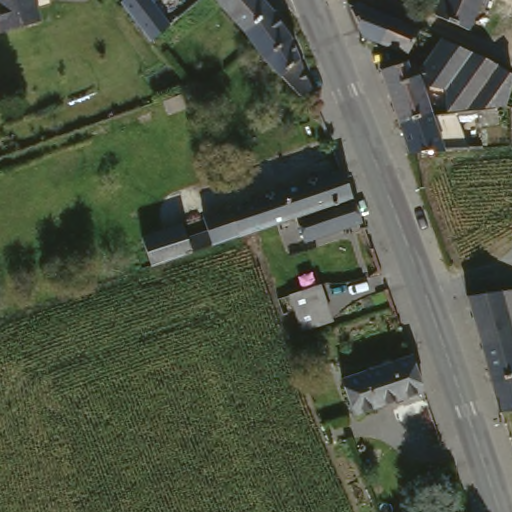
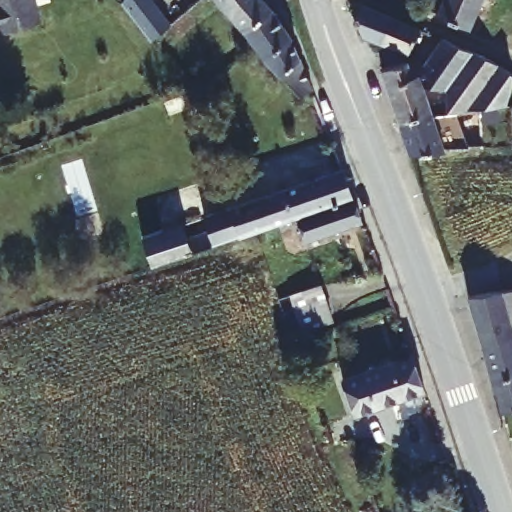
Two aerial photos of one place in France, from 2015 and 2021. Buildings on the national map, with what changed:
unchanged [(0,30),(0,0),(35,0),(41,18),(0,30)]
unchanged [(124,0),(158,0),(175,18),(158,44),(121,6),(124,0)]
unchanged [(282,77),(216,0),(264,0),(303,54),(282,77)]
unchanged [(353,25),(344,0),(355,0),(398,20),(410,25),(399,47),(387,41),(353,25)]
unchanged [(444,0),(483,0),(473,27),(440,12),(444,0)]
unchanged [(511,69),(505,104),(446,110),(442,84),(416,76),(429,116),(429,117),(394,120),(375,69),(413,60),(422,64),(437,35),(511,69)]
unchanged [(429,117),(429,116),(454,114),(467,149),(416,149),(406,149),(394,120),(429,117)]
unchanged [(138,231),(174,218),(178,229),(198,221),(194,210),(338,158),(350,190),(294,209),(258,222),(147,260),(138,231)]
unchanged [(362,221),(305,241),(294,209),(350,190),(362,221)]
unchanged [(284,309),(278,292),(285,290),(319,277),(332,312),(299,325),(291,306),(284,309)]
unchanged [(512,287),(512,408),(502,410),(471,292),(512,287)]
unchanged [(421,385),(353,412),(340,375),(408,350),(421,385)]

